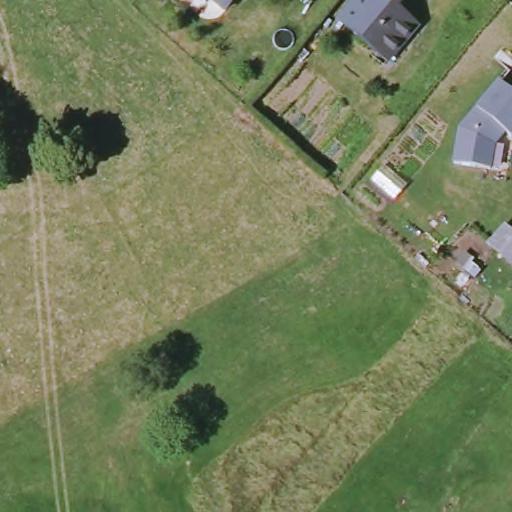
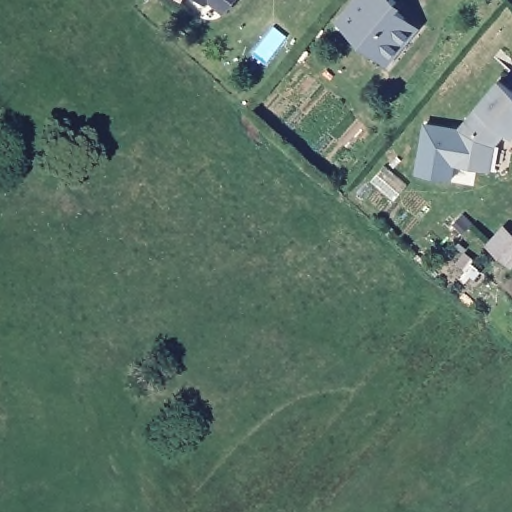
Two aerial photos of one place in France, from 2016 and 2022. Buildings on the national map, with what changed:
unchanged [(224,0),(235,0),(231,6),(224,0)]
unchanged [(390,14),(394,17),(398,14),(417,31),(390,64),(342,22),(361,0),(395,0),(399,4),(390,14)]
unchanged [(475,167),(452,163),(458,129),(498,81),(512,92),(512,135),(510,137),(503,131),(492,144),(490,155),(488,169),(475,167)]
new [(452,163),(455,164),(453,180),(416,173),(425,122),(458,129),(452,163)]

